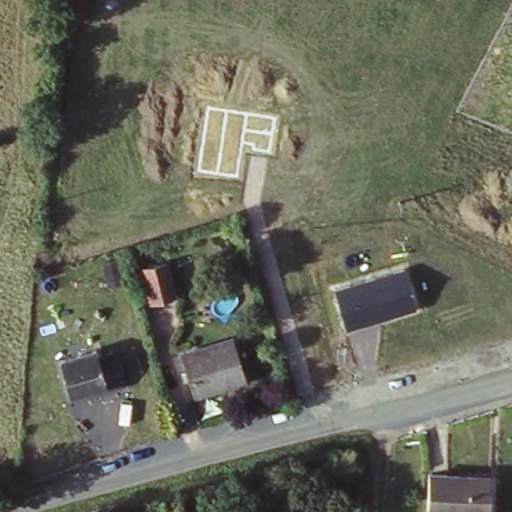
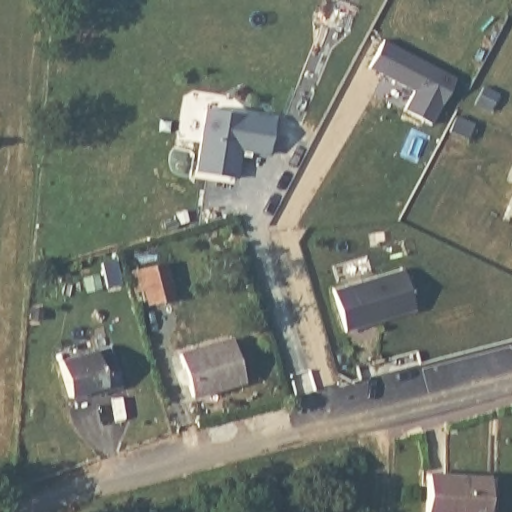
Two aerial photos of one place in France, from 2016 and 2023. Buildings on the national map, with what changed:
new [(385,40),(457,79),(432,125),(405,110),(415,91),(370,67),(385,40)]
new [(205,110),(272,120),(267,156),(239,151),(235,179),(195,172),(205,110)]
unchanged [(160,266),(174,298),(148,306),(137,274),(160,266)]
unchanged [(334,290),(406,268),(417,308),(345,330),(334,290)]
unchanged [(230,340),(246,380),(187,396),(175,354),(230,340)]
unchanged [(84,393),(69,398),(57,362),(107,350),(121,391),(103,398),(87,403),(84,393)]
unchanged [(488,478),(487,512),(427,512),(427,475),(488,478)]

